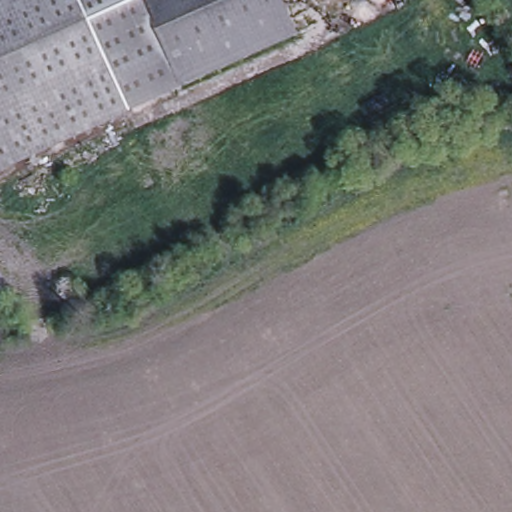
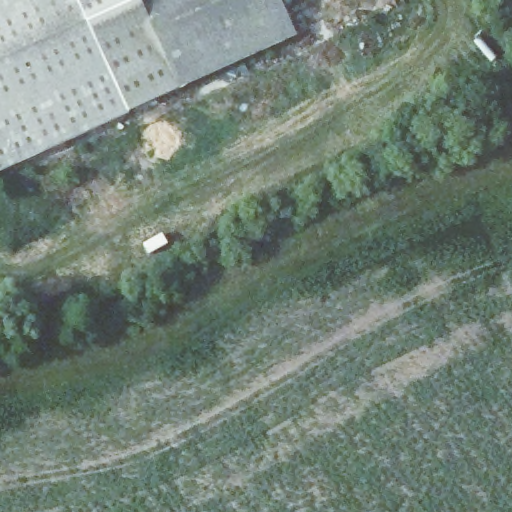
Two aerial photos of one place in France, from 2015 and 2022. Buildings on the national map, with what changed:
unchanged [(130,109),(132,111),(0,170),(0,0),(80,0),(130,109)]
unchanged [(185,85),(130,109),(80,0),(146,0),(185,85)]
unchanged [(298,35),(185,85),(146,0),(283,0),(298,35)]

